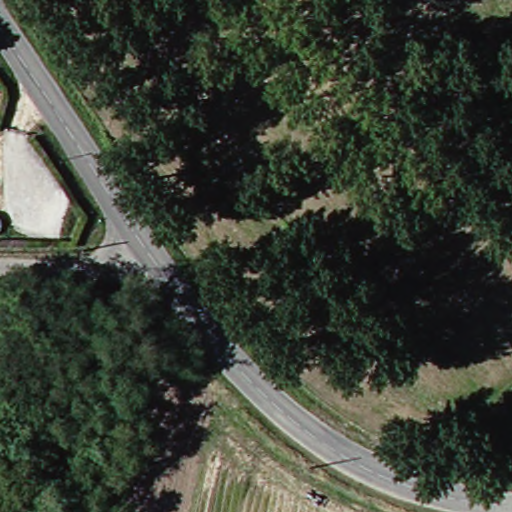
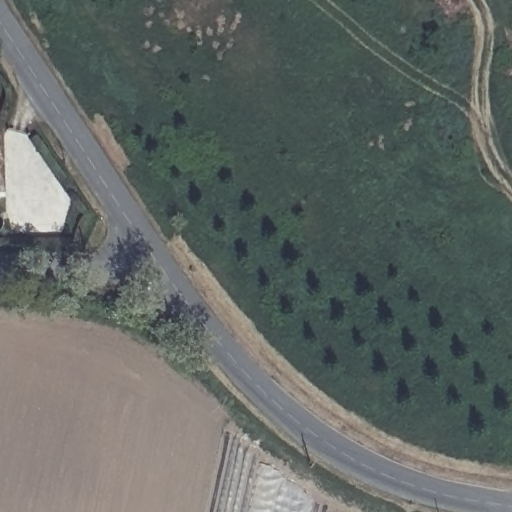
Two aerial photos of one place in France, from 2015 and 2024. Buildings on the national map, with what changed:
unchanged [(0,220),(2,225),(1,230),(0,232),(0,219),(0,220)]

